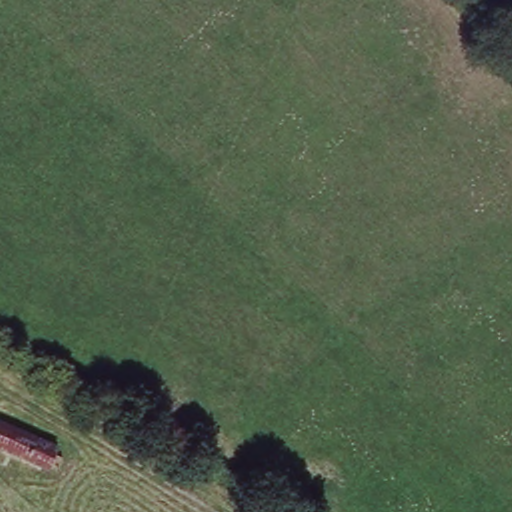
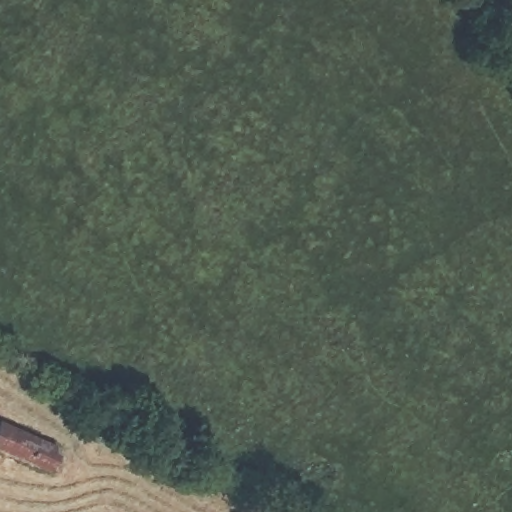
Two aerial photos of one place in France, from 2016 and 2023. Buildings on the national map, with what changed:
unchanged [(49,467),(0,447),(0,424),(1,422),(59,447),(49,467)]

